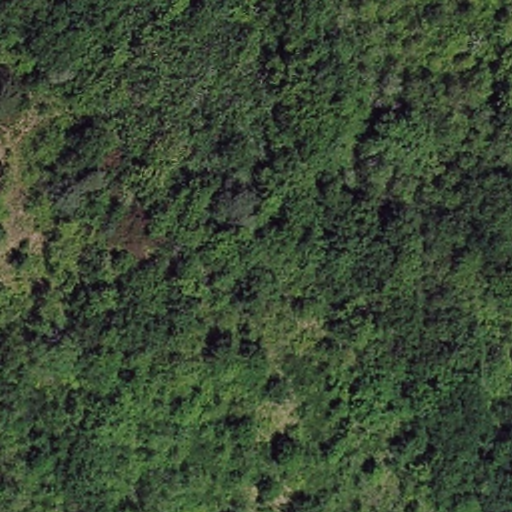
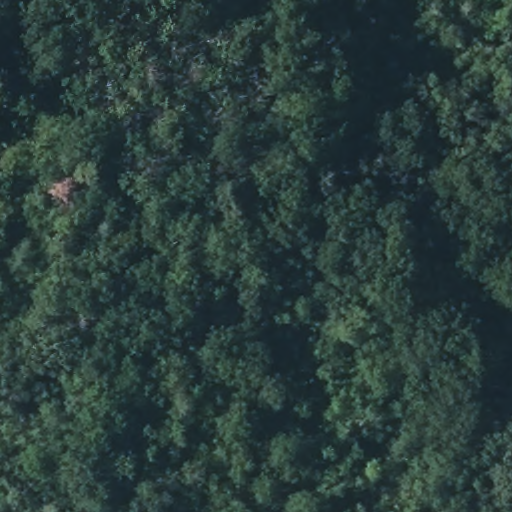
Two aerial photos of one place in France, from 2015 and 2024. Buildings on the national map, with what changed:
unchanged [(114,386),(133,377),(142,393),(124,403),(114,386)]

